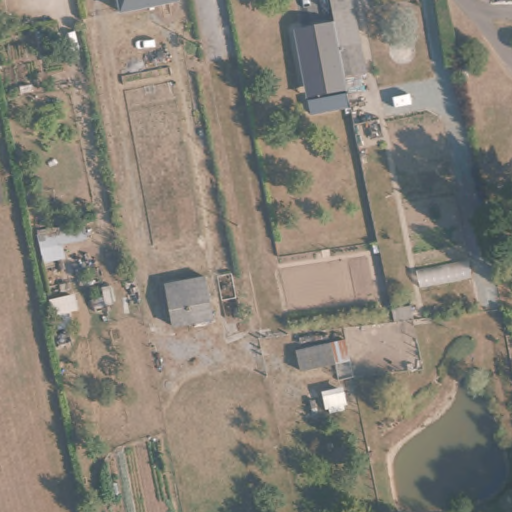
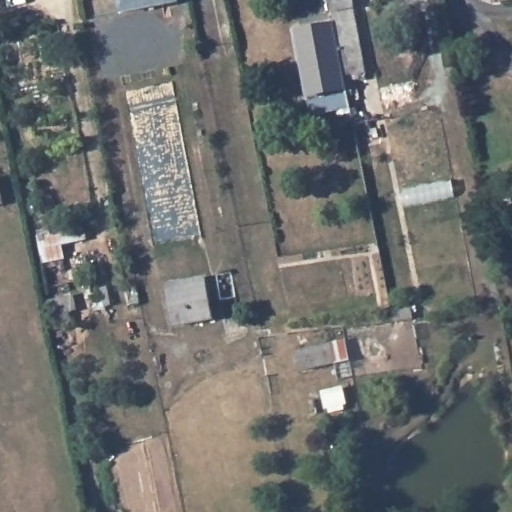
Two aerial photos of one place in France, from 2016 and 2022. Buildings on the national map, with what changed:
unchanged [(176,5),(120,16),(117,0),(175,0),(176,5)]
unchanged [(368,75),(344,77),(333,24),(328,0),(352,0),(368,75)]
unchanged [(291,34),(333,24),(344,77),(301,82),(291,34)]
unchanged [(5,205),(0,207),(0,185),(5,205)]
unchanged [(202,281),(210,322),(170,330),(163,289),(202,281)]
unchanged [(334,353),(338,370),(303,378),(300,359),(334,353)]

